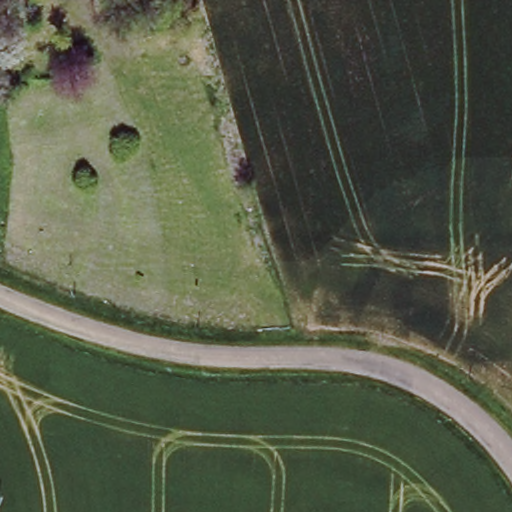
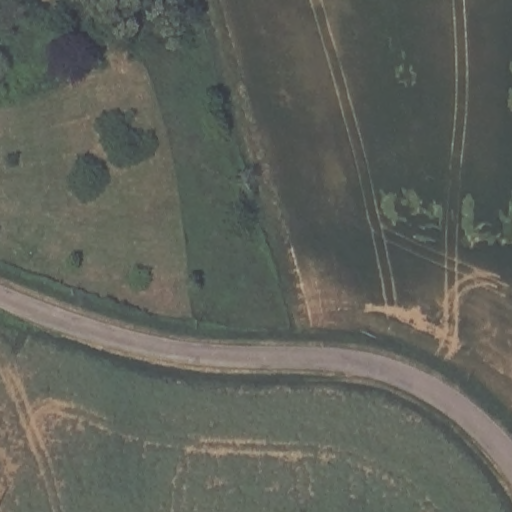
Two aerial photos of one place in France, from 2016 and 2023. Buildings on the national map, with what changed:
unchanged [(83,39),(87,51),(70,56),(67,44),(83,39)]

